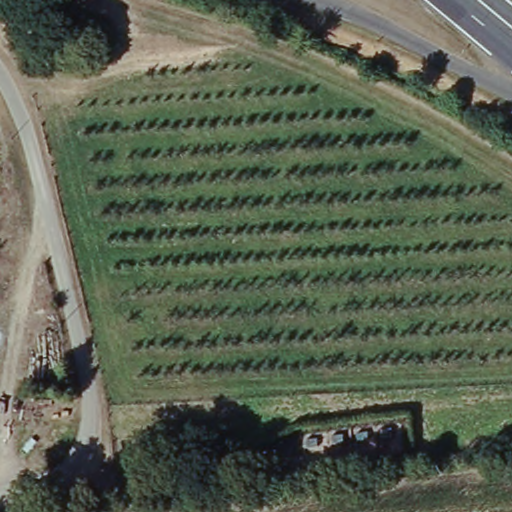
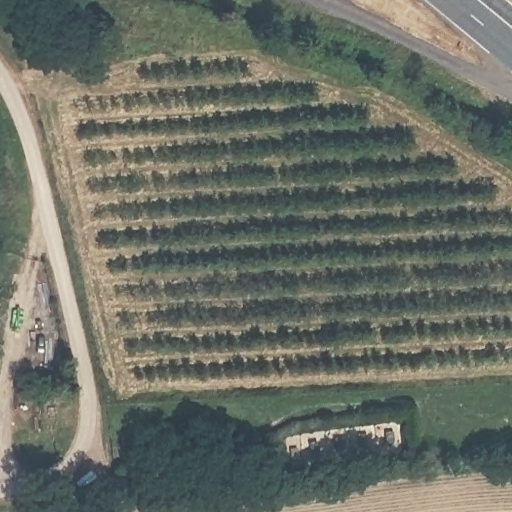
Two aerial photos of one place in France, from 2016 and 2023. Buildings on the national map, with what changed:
[]

